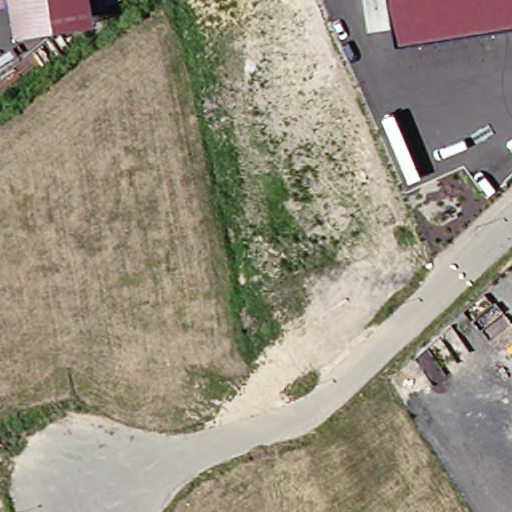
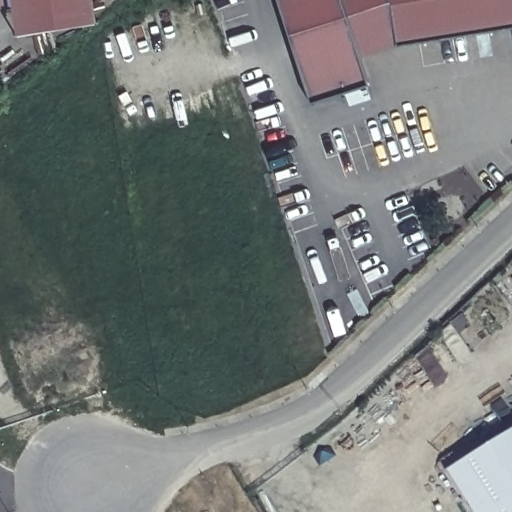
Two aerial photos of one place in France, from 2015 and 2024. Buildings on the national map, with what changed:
unchanged [(94,0),(97,20),(12,34),(7,0),(94,0)]
new [(368,85),(343,92),(313,102),(280,0),(342,0),(359,53),(368,85)]
new [(359,53),(342,0),(512,0),(512,25),(395,43),(359,53)]
new [(369,86),(373,98),(347,106),(344,94),(369,86)]
new [(447,470),(512,430),(512,512),(474,512),(447,470)]

